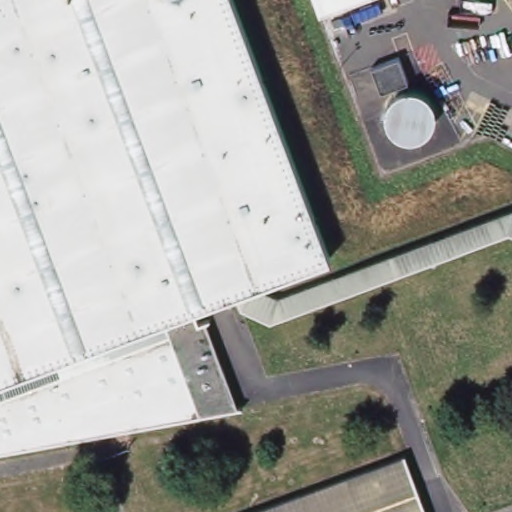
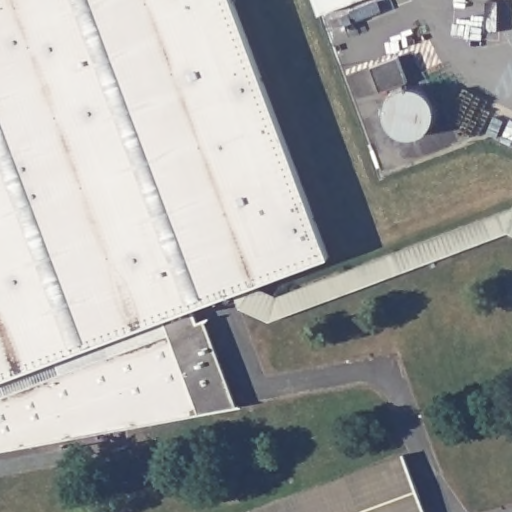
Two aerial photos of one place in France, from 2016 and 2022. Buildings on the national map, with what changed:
unchanged [(330,256),(254,285),(235,292),(193,308),(198,322),(205,319),(237,408),(0,451),(0,0),(234,0),(330,256)]
unchanged [(319,13),(314,0),(355,0),(319,13)]
unchanged [(370,63),(397,53),(407,78),(379,89),(370,63)]
unchanged [(384,101),(384,99),(385,97),(386,96),(388,94),(389,93),(390,92),(392,90),(393,89),(395,88),(396,87),(398,87),(400,86),(402,86),(404,85),(405,85),(407,85),(409,85),(411,85),(413,85),(415,86),(416,86),(418,87),(420,88),(422,89),(423,90),(425,91),(426,92),(427,93),(429,95),(430,96),(431,98),(432,99),(433,101),(433,103),(434,105),(434,106),(435,108),(435,110),(435,112),(435,114),(435,116),(434,118),(434,119),(433,121),(432,123),(432,124),(431,126),(430,128),(428,129),(427,130),(426,132),(424,133),(423,134),(421,135),(420,136),(418,137),(416,137),(414,138),(412,138),(411,138),(409,139),(407,139),(405,138),(403,138),(401,138),(399,137),(398,136),(396,136),(394,135),(393,134),(391,133),(390,131),(389,130),(387,129),(386,127),(385,126),(384,124),(383,122),(383,121),(382,119),(382,117),(381,115),(381,113),(381,111),(381,110),(381,108),(382,106),(382,104),(383,102),(384,101)]
unchanged [(512,209),(512,234),(508,232),(269,321),(240,307),(235,292),(254,285),(277,296),(512,209)]
unchanged [(249,512),(403,454),(425,512),(249,512)]

